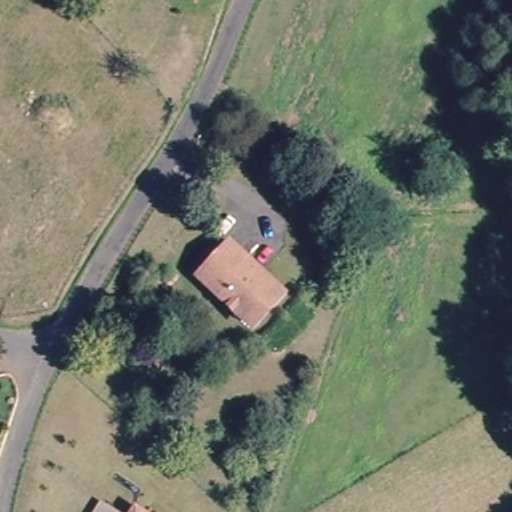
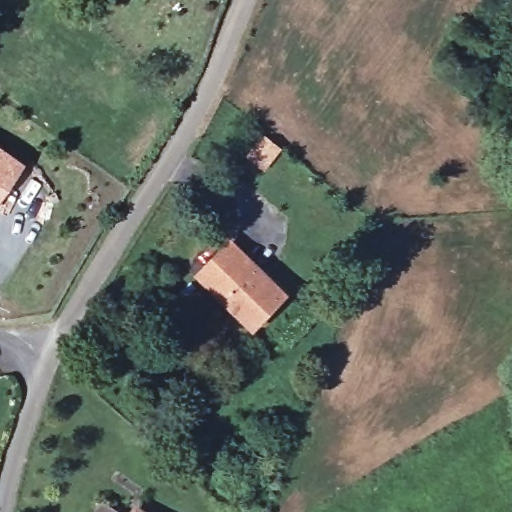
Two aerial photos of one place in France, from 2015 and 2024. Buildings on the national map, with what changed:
unchanged [(255,134),(271,147),(255,167),(239,154),(255,134)]
new [(23,164),(0,197),(0,148),(23,164)]
unchanged [(229,240),(291,292),(261,329),(199,277),(229,240)]
unchanged [(104,512),(99,512),(100,510),(104,512)]

